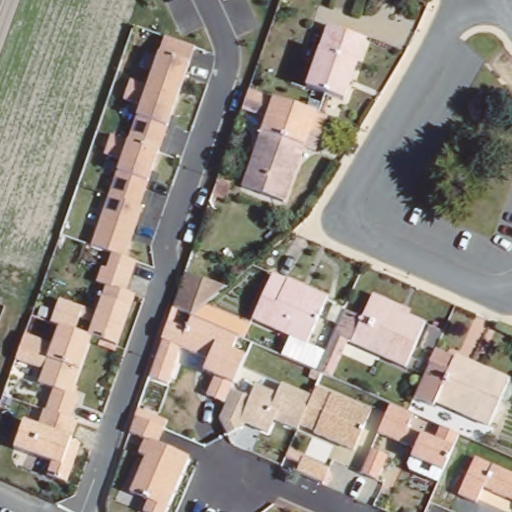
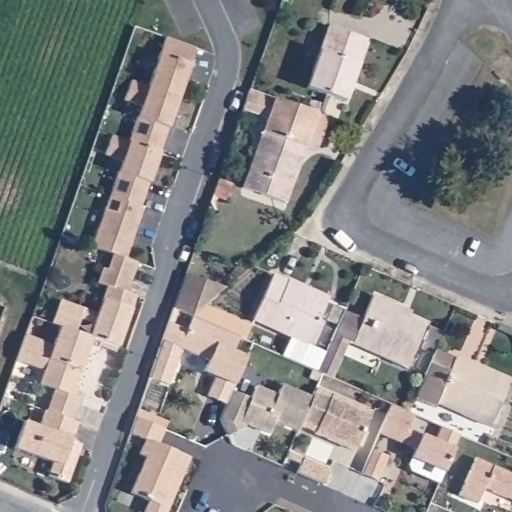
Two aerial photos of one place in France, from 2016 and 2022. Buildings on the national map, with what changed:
unchanged [(349,105),(309,91),(331,29),(371,43),(349,105)]
unchanged [(52,464),(14,450),(24,423),(38,428),(43,411),(46,412),(53,392),(39,387),(45,370),(16,361),(24,336),(52,346),(58,328),(49,325),(58,301),(95,313),(104,288),(96,285),(101,269),(106,271),(111,254),(91,248),(116,175),(121,163),(104,158),(111,136),(128,141),(139,108),(124,104),(131,81),(147,86),(157,57),(163,40),(191,49),(187,64),(165,127),(146,186),(123,258),(136,264),(126,293),(135,296),(130,314),(118,348),(91,339),(71,393),(78,396),(68,420),(77,422),(71,439),(61,466),(56,479),(46,476),(52,464)]
unchanged [(332,116),(326,135),(320,151),(310,147),(289,206),(247,191),(273,116),(248,107),(255,88),(322,112),(332,116)]
unchanged [(195,318),(179,311),(191,276),(229,289),(207,308),(253,328),(248,341),(195,318)]
unchanged [(317,342),(260,322),(276,278),(333,299),(317,342)]
unchanged [(364,326),(373,302),(405,313),(402,322),(427,331),(412,373),(346,348),(331,387),(317,381),(344,319),(364,326)]
unchanged [(236,351),(248,358),(234,389),(228,403),(207,395),(214,375),(203,371),(208,359),(182,349),(170,384),(150,377),(174,309),(179,311),(195,318),(236,336),(241,338),(236,351)]
unchanged [(512,377),(495,426),(441,406),(439,411),(418,404),(439,353),(453,358),(454,355),(512,377)]
unchanged [(250,397),(255,384),(277,393),(281,381),(315,396),(303,424),(300,432),(275,420),(270,435),(247,427),(228,437),(220,419),(228,403),(234,389),(250,397)]
unchanged [(315,396),(319,387),(374,409),(357,451),(303,424),(315,396)]
unchanged [(411,427),(424,433),(436,438),(443,426),(461,434),(455,447),(444,471),(411,456),(415,449),(378,432),(393,403),(416,413),(411,427)]
unchanged [(191,456),(168,512),(143,512),(148,500),(131,492),(145,456),(139,453),(145,438),(131,432),(136,416),(166,428),(160,444),(191,456)]
unchanged [(512,471),(512,501),(485,488),(478,503),(459,495),(475,454),(512,471)]

